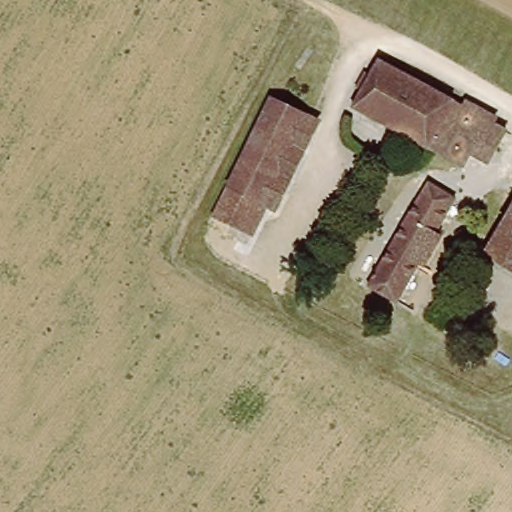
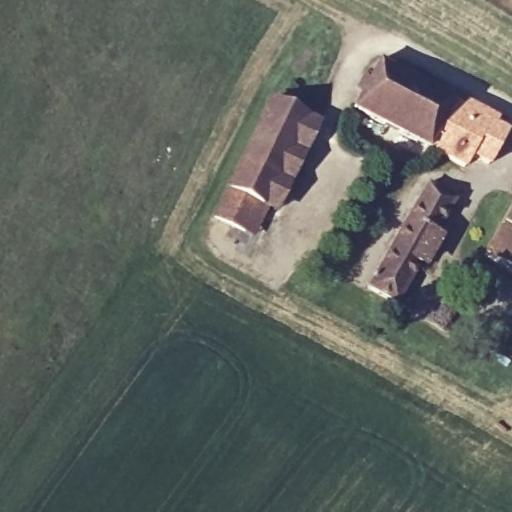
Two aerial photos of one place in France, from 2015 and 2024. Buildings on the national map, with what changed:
unchanged [(382,61),(498,132),(479,162),(465,154),(456,170),(427,153),(418,155),(350,116),(382,61)]
unchanged [(213,216),(230,190),(283,107),(315,127),(263,211),(255,206),(238,232),(213,216)]
unchanged [(372,284),(427,186),(458,205),(400,307),(367,292),(372,284)]
unchanged [(512,282),(482,263),(512,215),(512,282)]

